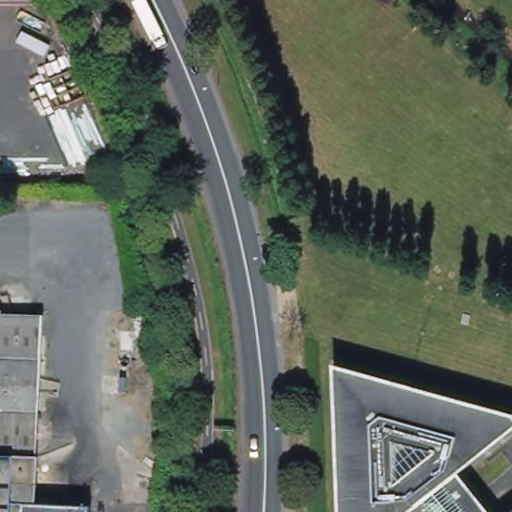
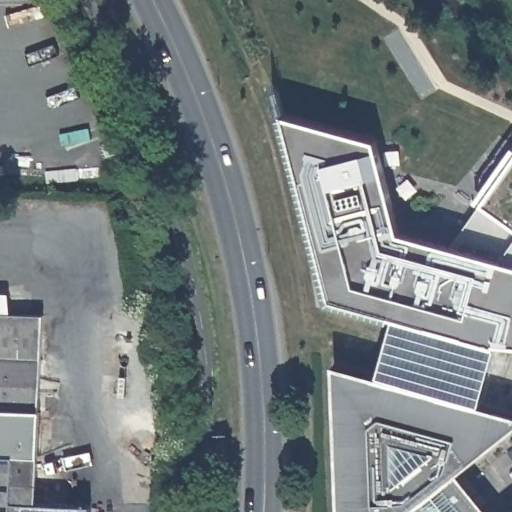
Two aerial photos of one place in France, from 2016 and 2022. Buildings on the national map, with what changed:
new [(395,315),(333,296),(284,113),(377,140),(400,232),(454,245),(480,202),(512,159),(512,344),(499,343),(481,406),(378,378),(395,315)]
unchanged [(48,315),(37,504),(92,507),(91,512),(0,512),(0,312),(48,315)]
unchanged [(330,365),(512,415),(512,428),(458,472),(489,512),(336,512),(330,365)]

